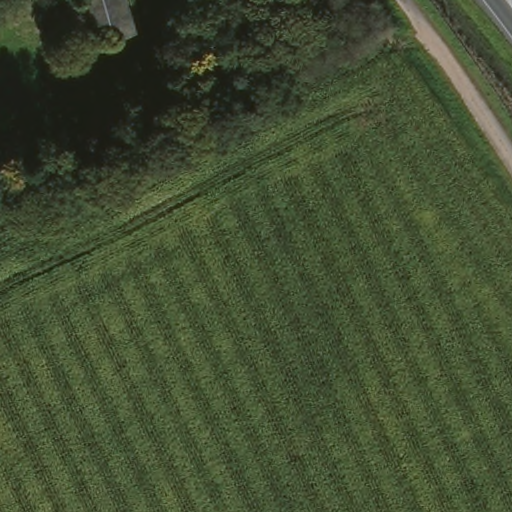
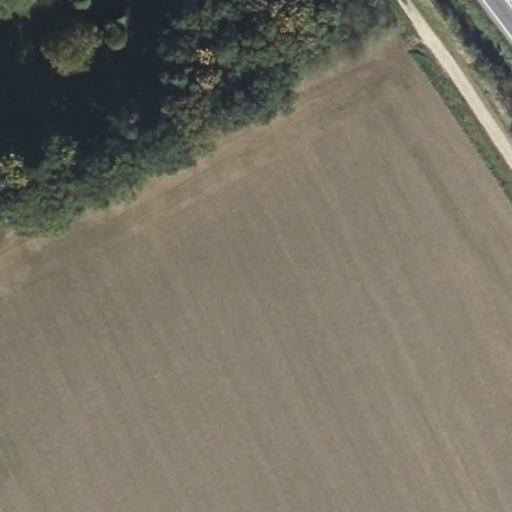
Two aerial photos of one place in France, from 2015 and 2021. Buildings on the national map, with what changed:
unchanged [(145,48),(105,58),(89,0),(133,0),(145,48)]

